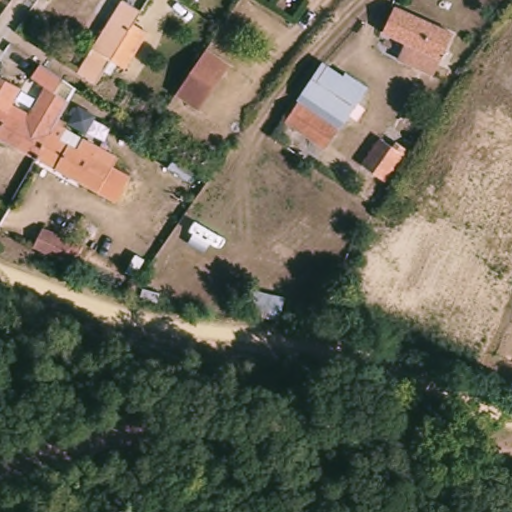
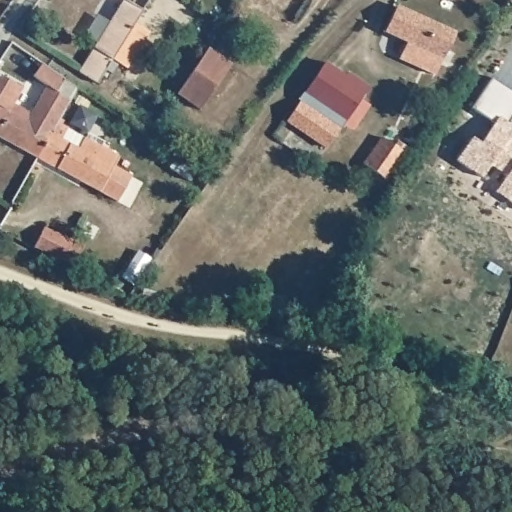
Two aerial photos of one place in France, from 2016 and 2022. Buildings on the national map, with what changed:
unchanged [(100,84),(81,71),(97,47),(127,0),(146,11),(138,24),(151,32),(128,68),(115,60),(111,65),(106,74),(100,84)]
unchanged [(458,35),(447,59),(388,32),(399,8),(458,35)]
unchanged [(182,90),(211,47),(234,63),(203,110),(179,94),(182,90)]
unchanged [(29,114),(44,85),(30,76),(39,62),(60,77),(61,78),(53,91),(68,99),(57,119),(55,122),(53,125),(47,136),(41,149),(36,159),(0,139),(0,78),(22,90),(13,105),(29,114)]
unchanged [(370,93),(345,129),(344,129),(304,101),(303,100),(304,98),(313,85),(329,64),(370,93)]
new [(505,177),(489,166),(480,179),(455,161),(470,140),(479,145),(493,125),(470,110),(491,79),(512,94),(512,117),(507,125),(512,129),(512,133),(507,140),(512,143),(512,206),(494,194),(505,177)]
unchanged [(304,101),(344,129),(330,149),(297,126),(290,121),(304,101)]
unchanged [(117,157),(98,192),(36,159),(41,149),(47,136),(53,125),(55,122),(117,157)]
unchanged [(401,150),(405,145),(412,150),(388,179),(367,165),(387,139),(401,150)]
unchanged [(128,176),(115,200),(98,192),(111,167),(128,176)]
unchanged [(82,247),(72,264),(64,259),(63,261),(34,245),(44,226),(82,247)]
unchanged [(284,299),(279,321),(248,315),(252,291),(284,299)]

